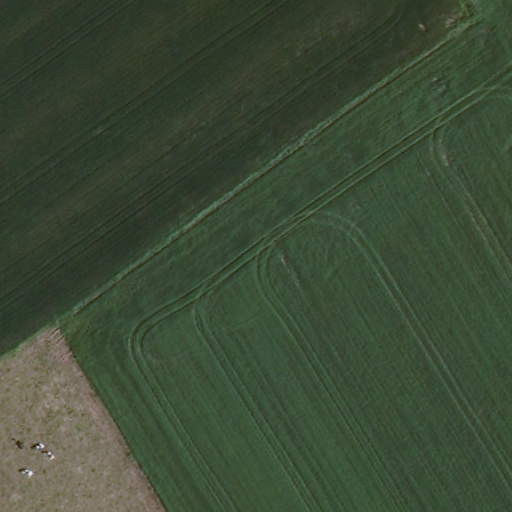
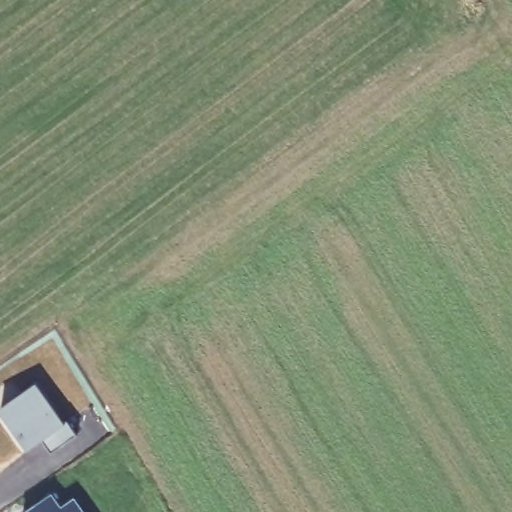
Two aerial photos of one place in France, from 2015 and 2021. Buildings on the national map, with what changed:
new [(37,386),(65,425),(69,422),(80,436),(54,455),(44,442),(30,452),(1,412),(37,386)]

